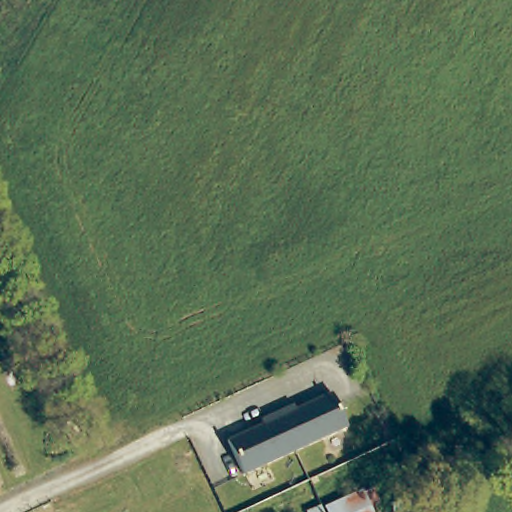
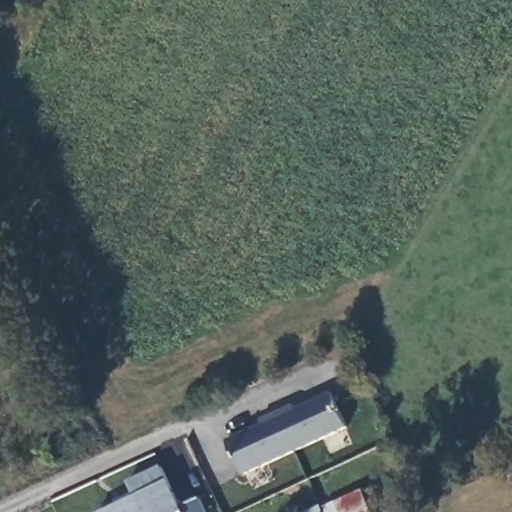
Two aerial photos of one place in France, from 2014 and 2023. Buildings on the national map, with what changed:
unchanged [(351,426),(297,451),(244,475),(228,442),(265,424),(263,420),(279,413),(295,405),(298,410),(334,392),(351,426)]
new [(129,480),(162,465),(169,479),(183,508),(204,496),(211,512),(102,512),(136,495),(129,480)]
unchanged [(329,512),(327,507),(363,491),(373,512),(329,512)]

